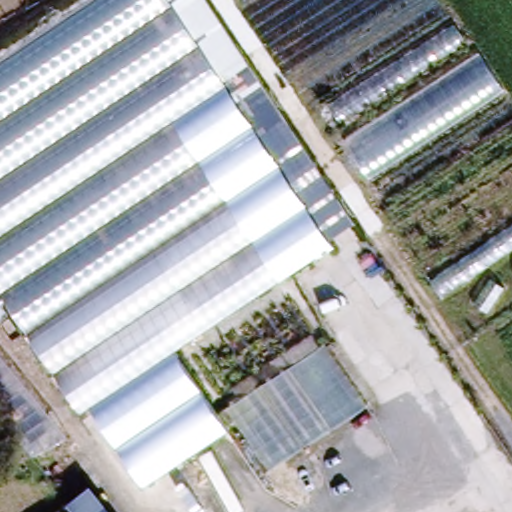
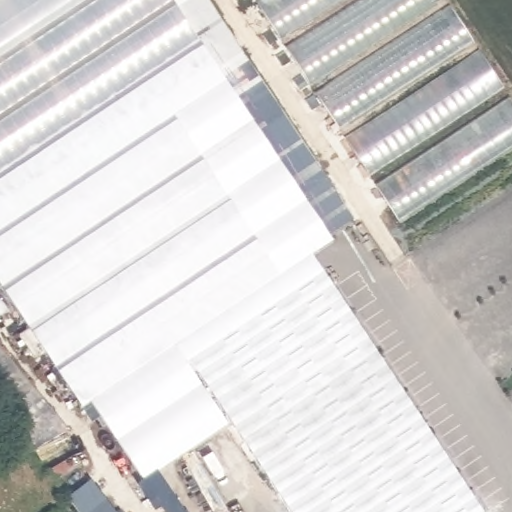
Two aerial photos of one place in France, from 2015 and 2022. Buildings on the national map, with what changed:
unchanged [(82,411),(0,285),(0,0),(177,0),(333,240),(82,411)]
new [(357,219),(331,237),(177,0),(209,0),(357,219)]
new [(512,101),(512,149),(400,223),(254,0),(447,0),(512,101)]
new [(290,512),(231,424),(229,426),(187,364),(325,271),(485,512),(290,512)]
demolished [(368,405),(271,468),(228,406),(326,343),(368,405)]
unchanged [(92,404),(176,347),(229,426),(144,482),(92,404)]
unchanged [(77,512),(69,501),(91,483),(116,512),(77,512)]

